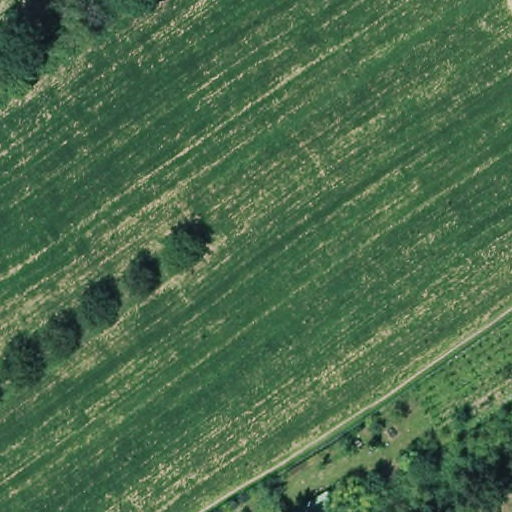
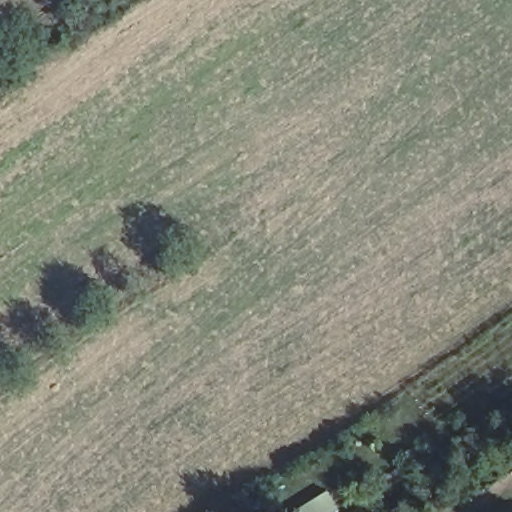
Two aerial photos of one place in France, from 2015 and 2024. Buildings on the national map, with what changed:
unchanged [(340,499),(341,502),(330,509),(320,496),(323,494),(317,484),(340,468),(348,478),(355,474),(362,484),(340,499)]

